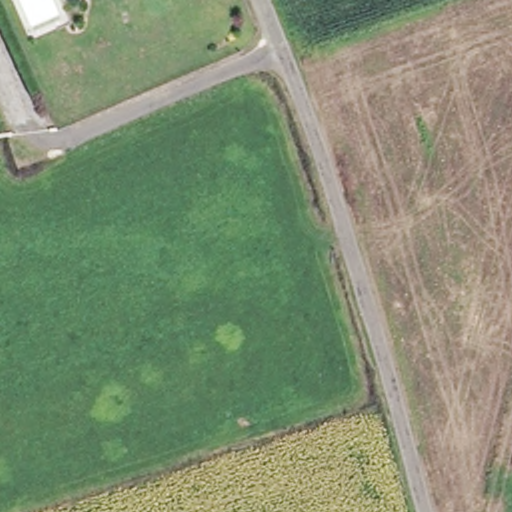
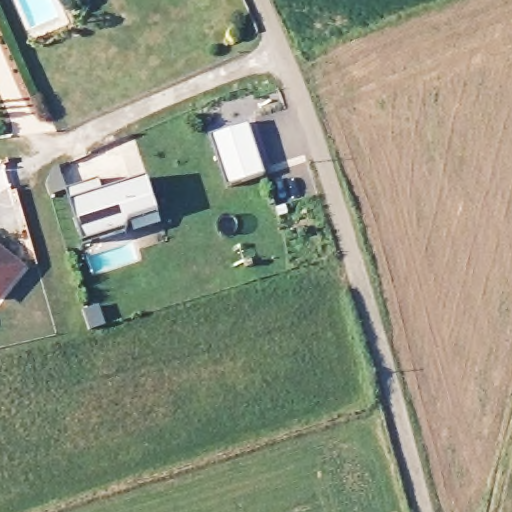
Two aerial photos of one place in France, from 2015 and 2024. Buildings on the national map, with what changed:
new [(250,122),(267,175),(228,187),(211,135),(250,122)]
new [(105,191),(149,177),(160,212),(132,221),(127,231),(84,245),(75,216),(66,189),(80,185),(100,179),(105,191)]
new [(0,298),(0,250),(24,268),(0,298)]
new [(100,306),(106,325),(91,330),(86,310),(100,306)]

